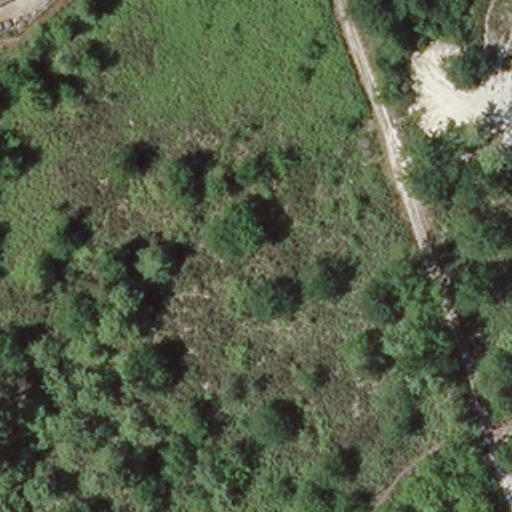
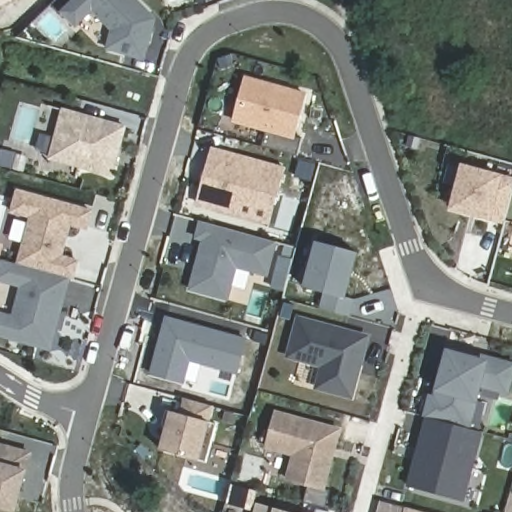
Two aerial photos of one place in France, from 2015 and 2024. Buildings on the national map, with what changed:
unchanged [(0,0),(15,0),(0,8),(0,0)]
new [(75,0),(137,0),(150,13),(158,2),(162,7),(160,28),(151,27),(147,44),(152,44),(150,58),(99,46),(81,26),(75,32),(59,15),(75,0)]
new [(245,77),(305,95),(293,136),(301,138),(297,156),(261,146),(265,130),(233,121),(245,77)]
new [(127,125),(114,177),(47,160),(62,108),(127,125)]
new [(270,226),(195,205),(212,147),(286,167),(270,226)]
new [(512,176),(512,189),(503,225),(491,220),(450,210),(461,163),(505,174),(512,176)]
new [(12,212),(17,192),(90,210),(85,227),(70,223),(60,257),(75,260),(70,279),(17,265),(31,217),(12,212)]
new [(276,242),(267,275),(235,266),(226,298),(190,288),(204,240),(197,238),(201,221),(276,242)]
new [(317,241),(356,252),(344,297),(353,300),(348,316),(321,308),(325,292),(305,287),(317,241)]
new [(70,279),(51,351),(0,338),(0,312),(12,315),(20,287),(0,283),(0,260),(17,265),(70,279)]
new [(370,335),(353,400),(314,390),(319,367),(284,360),(296,315),(370,335)]
new [(166,318),(170,318),(245,340),(236,372),(189,360),(182,382),(150,374),(164,325),(166,318)]
new [(423,418),(428,394),(433,395),(435,392),(446,348),(489,359),(512,363),(512,381),(508,396),(481,390),(477,403),(470,430),(423,418)]
new [(164,425),(166,410),(172,411),(180,414),(185,398),(212,406),(209,422),(215,424),(205,460),(199,458),(198,460),(161,452),(169,426),(164,425)]
new [(342,428),(325,492),(284,480),(290,455),(263,450),(275,410),(342,428)]
new [(465,501),(406,486),(423,418),(470,430),(482,432),(465,501)]
new [(29,470),(17,512),(8,512),(0,510),(0,443),(32,452),(26,470),(29,470)]
new [(291,512),(254,512),(256,502),(273,507),(291,512)]
new [(425,512),(404,512),(405,506),(425,512)]

